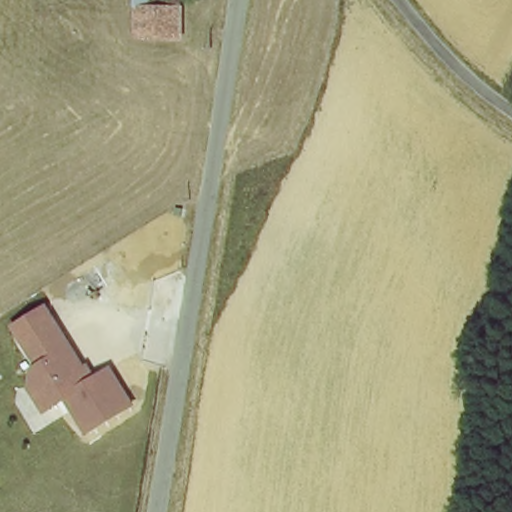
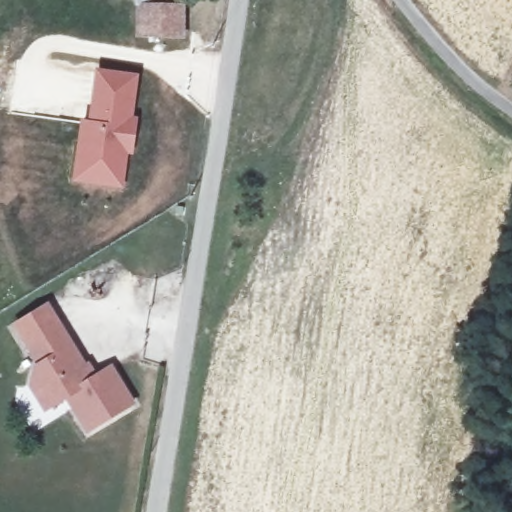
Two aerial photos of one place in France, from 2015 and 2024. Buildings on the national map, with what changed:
unchanged [(136,5),(150,5),(150,0),(176,0),(175,5),(175,32),(135,35),(136,5)]
new [(138,77),(132,117),(137,119),(132,157),(126,157),(123,192),(70,185),(78,122),(87,122),(95,70),(138,77)]
unchanged [(48,302),(83,364),(87,361),(97,373),(113,363),(135,406),(88,435),(71,402),(45,413),(30,388),(37,364),(12,327),(48,302)]

